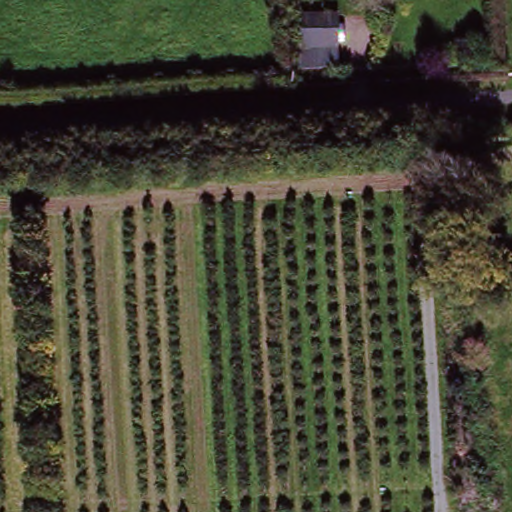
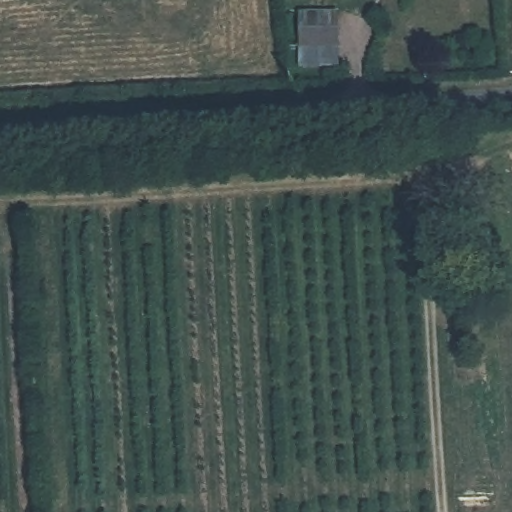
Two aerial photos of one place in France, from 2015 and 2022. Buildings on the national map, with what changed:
unchanged [(301,45),(300,12),(334,10),(336,43),(337,63),(302,65),(301,45)]

